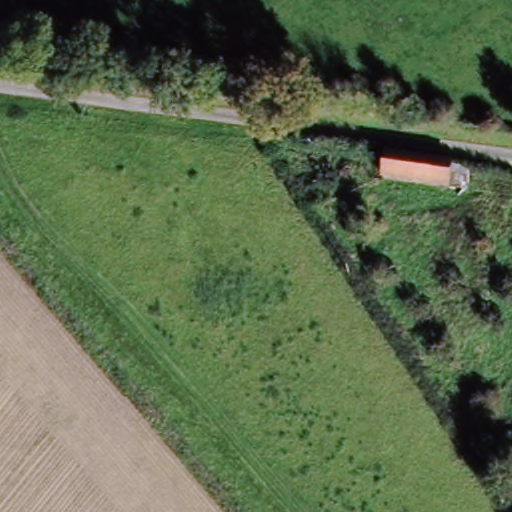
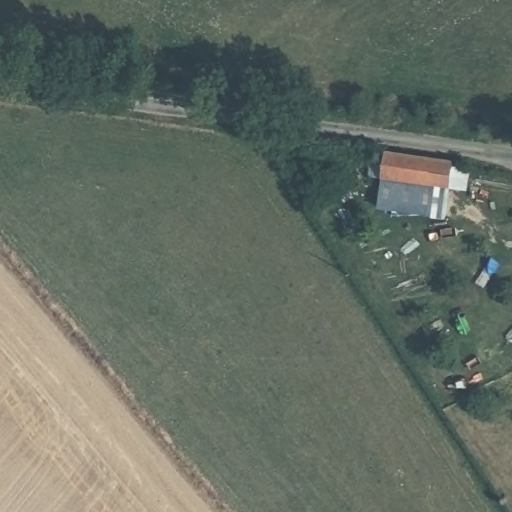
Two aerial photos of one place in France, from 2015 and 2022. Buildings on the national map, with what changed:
unchanged [(378,174),(381,151),(447,157),(448,162),(469,165),(465,187),(442,183),(378,174)]

